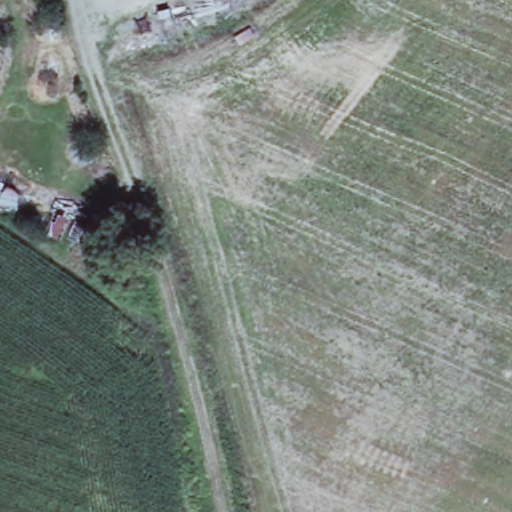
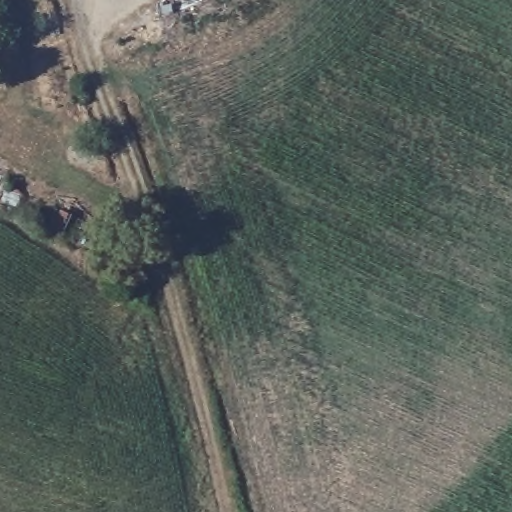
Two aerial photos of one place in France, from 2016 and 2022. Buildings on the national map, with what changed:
unchanged [(98,222),(88,254),(0,208),(0,171),(98,222)]

